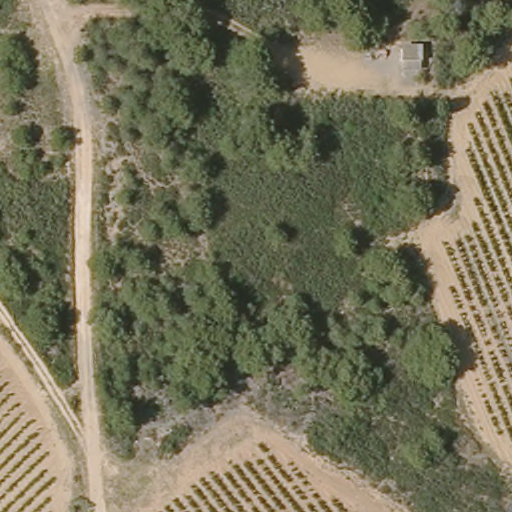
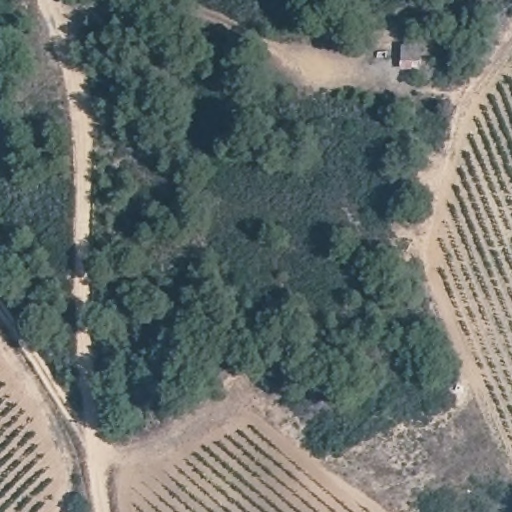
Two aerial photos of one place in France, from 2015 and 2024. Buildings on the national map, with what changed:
unchanged [(407,46),(429,46),(429,62),(405,61),(407,46)]

